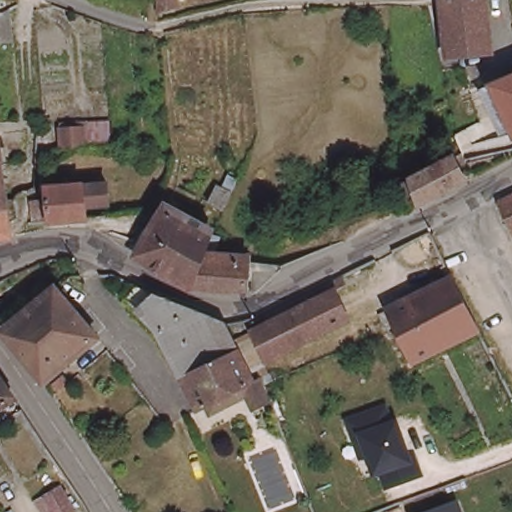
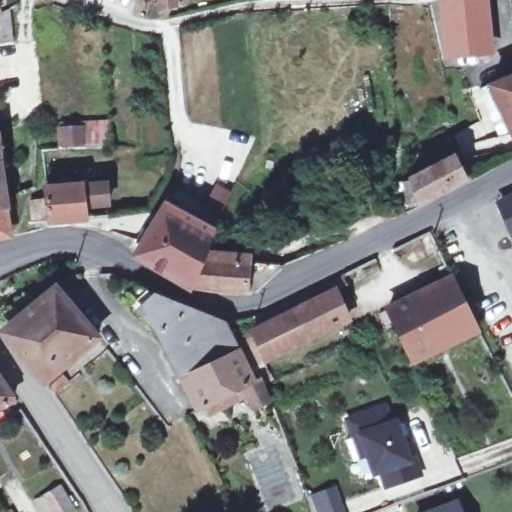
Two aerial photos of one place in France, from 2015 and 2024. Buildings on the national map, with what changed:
unchanged [(177,2),(157,9),(156,0),(177,0),(177,2)]
unchanged [(489,50),(469,52),(448,54),(443,0),(483,0),(489,50)]
unchanged [(10,35),(0,37),(0,4),(6,1),(10,35)]
unchanged [(512,75),(512,134),(501,110),(490,115),(479,89),(490,84),(497,81),(512,75)]
unchanged [(60,129),(82,127),(82,122),(109,120),(111,145),(60,147),(60,129)]
unchanged [(454,155),(465,176),(417,201),(410,179),(454,155)]
unchanged [(82,197),(82,214),(25,219),(24,195),(41,193),(40,180),(100,176),(102,196),(82,197)]
unchanged [(0,201),(0,184),(2,201),(0,201)]
unchanged [(227,192),(220,207),(205,200),(213,185),(227,192)]
unchanged [(512,196),(512,230),(499,202),(512,196)]
unchanged [(5,224),(0,225),(0,201),(2,201),(5,224)]
unchanged [(190,282),(170,271),(137,248),(157,215),(165,203),(207,229),(201,250),(190,282)]
unchanged [(245,254),(245,286),(222,286),(190,282),(201,250),(245,254)]
unchanged [(269,355),(257,330),(274,321),(270,311),(347,272),(352,283),(340,289),(352,316),(269,355)]
unchanged [(393,317),(384,321),(380,311),(454,275),(479,326),(414,358),(393,317)]
unchanged [(43,379),(7,325),(57,285),(97,334),(43,379)]
unchanged [(266,365),(264,365),(269,375),(255,380),(202,409),(171,342),(164,325),(149,308),(162,293),(195,308),(229,322),(237,340),(250,333),(266,365)]
unchanged [(0,376),(3,380),(0,381),(0,376)]
unchanged [(13,395),(0,403),(0,381),(3,380),(13,395)]
unchanged [(385,491),(379,475),(372,477),(365,460),(359,461),(344,416),(387,403),(394,418),(398,417),(412,455),(417,451),(426,477),(385,491)]
new [(345,512),(314,512),(308,495),(335,485),(345,512)]
unchanged [(75,511),(74,512),(52,512),(44,497),(60,487),(75,511)]
unchanged [(463,512),(438,512),(460,503),(463,512)]

